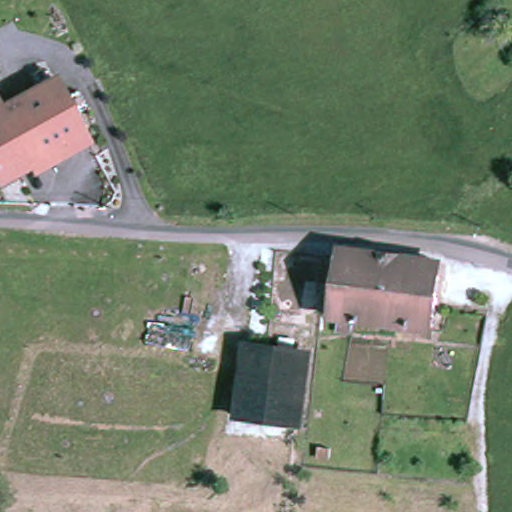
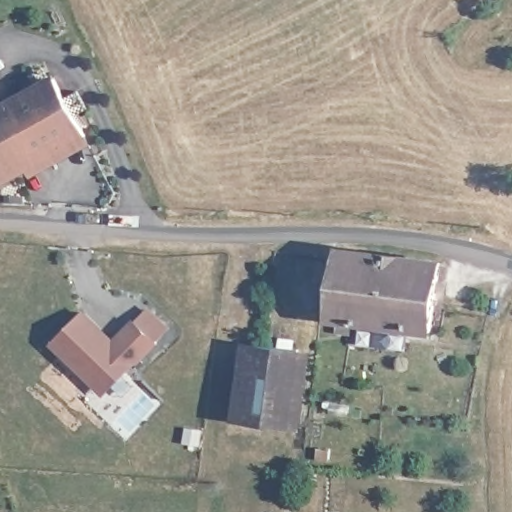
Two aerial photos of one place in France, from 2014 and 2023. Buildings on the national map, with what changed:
unchanged [(0,175),(0,105),(5,113),(59,81),(92,137),(7,186),(0,176),(0,175)]
unchanged [(372,248),(446,259),(436,327),(350,314),(349,325),(334,322),(344,251),(372,255),(372,248)]
new [(170,326),(156,340),(159,342),(105,394),(51,343),(85,309),(113,337),(133,316),(135,320),(149,305),(170,326)]
unchanged [(242,423),(249,345),(318,355),(307,429),(242,423)]

